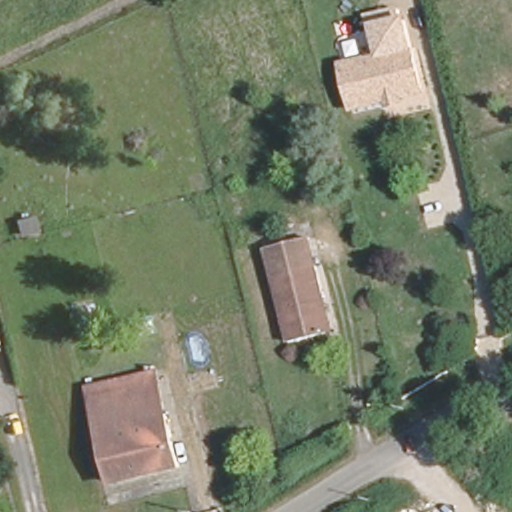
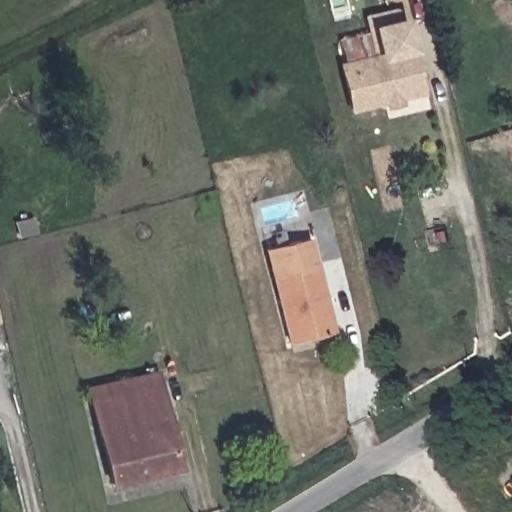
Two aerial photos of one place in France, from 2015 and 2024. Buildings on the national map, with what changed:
unchanged [(428,94),(350,112),(338,64),(377,56),(369,23),(366,13),(398,4),(407,15),(417,48),(428,94)]
unchanged [(328,331),(290,339),(269,244),(297,238),(312,234),(319,262),(327,293),(318,294),(328,331)]
unchanged [(89,405),(84,384),(154,367),(159,388),(89,405)]
unchanged [(109,486),(89,405),(159,388),(182,470),(109,486)]

